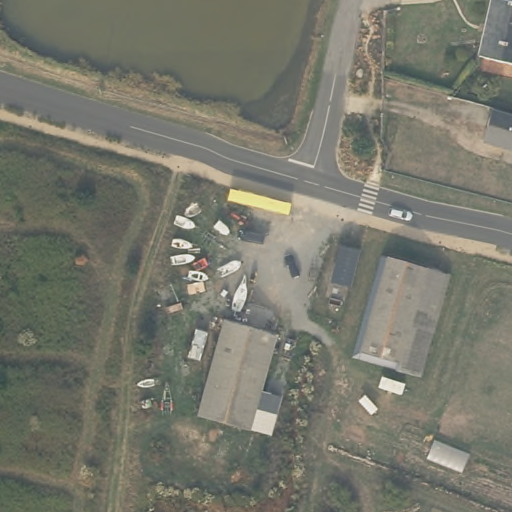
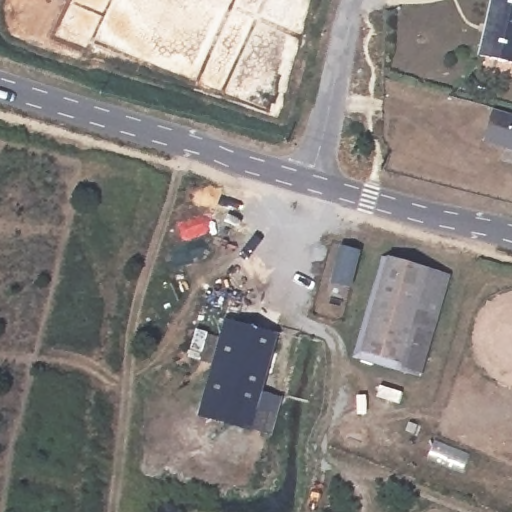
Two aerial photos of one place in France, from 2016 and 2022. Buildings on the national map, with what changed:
unchanged [(490,0),(491,0),(498,2),(498,0),(512,0),(512,67),(478,62),(481,43),(490,0)]
unchanged [(512,119),(512,153),(483,145),(491,113),(512,119)]
unchanged [(452,275),(426,374),(355,356),(380,256),(452,275)]
unchanged [(276,333),(248,431),(197,416),(226,320),(276,333)]

